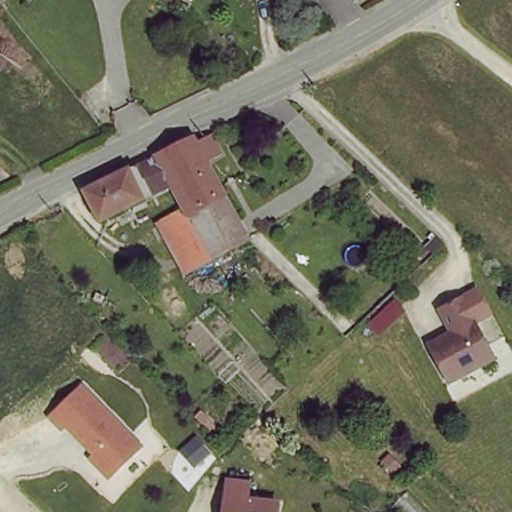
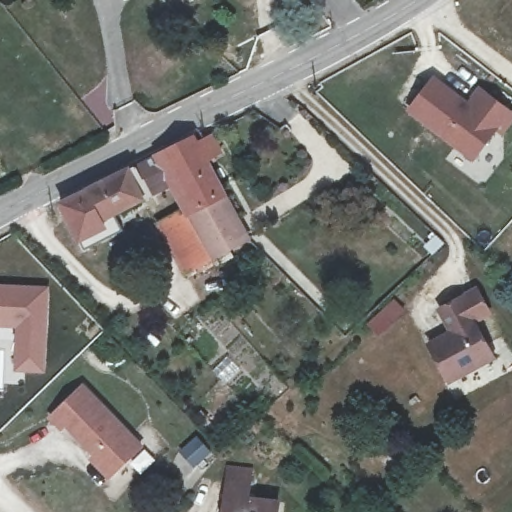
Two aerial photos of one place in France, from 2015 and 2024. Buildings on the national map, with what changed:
new [(434,75),(467,100),(479,85),(512,109),(512,123),(503,136),(495,131),(474,163),(407,114),(434,75)]
unchanged [(198,148),(215,140),(224,158),(208,166),(225,197),(187,218),(173,195),(171,188),(157,159),(176,149),(194,140),(198,148)]
unchanged [(93,192),(154,160),(157,159),(171,188),(103,222),(88,194),(93,192)]
unchanged [(240,264),(245,272),(234,279),(229,271),(221,275),(213,261),(188,275),(159,226),(178,215),(182,220),(187,218),(225,197),(247,240),(229,251),(237,266),(240,264)]
new [(0,319),(0,287),(46,290),(41,370),(18,368),(20,320),(0,319)]
unchanged [(462,301),(492,361),(447,385),(429,348),(452,335),(440,312),(462,301)]
unchanged [(111,477),(49,418),(81,379),(143,443),(111,477)]
unchanged [(278,512),(221,512),(224,477),(250,477),(250,495),(280,498),(278,512)]

